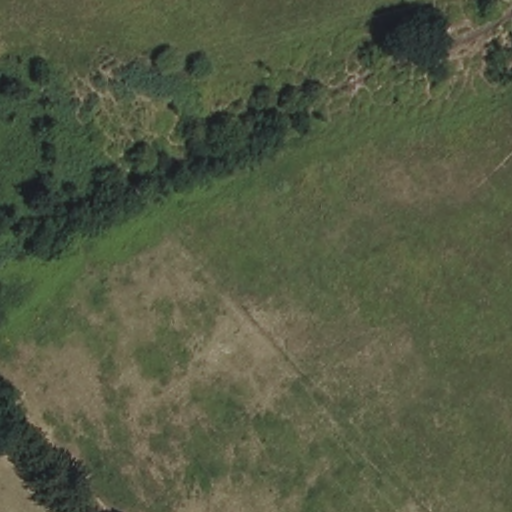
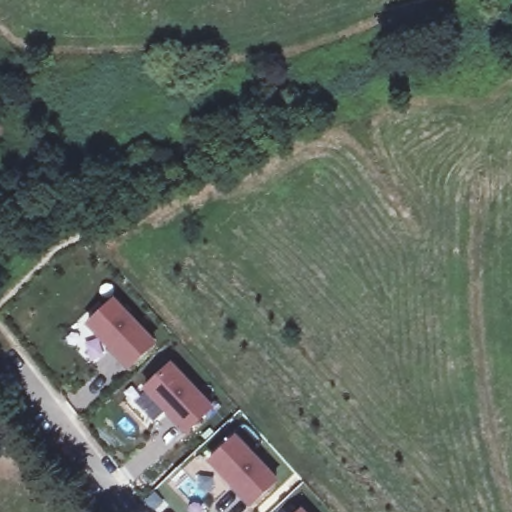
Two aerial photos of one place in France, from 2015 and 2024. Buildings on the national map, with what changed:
new [(129,369),(88,327),(114,303),(154,346),(129,369)]
new [(211,410),(186,434),(145,391),(170,367),(211,410)]
new [(276,482),(251,506),(210,463),(235,439),(276,482)]

